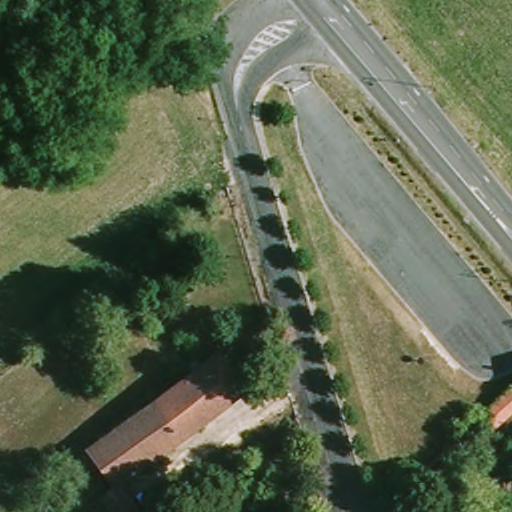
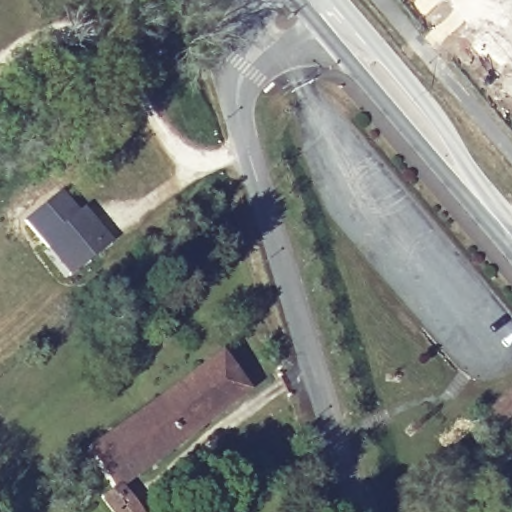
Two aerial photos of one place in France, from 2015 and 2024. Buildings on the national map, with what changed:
new [(52,249),(30,221),(64,193),(80,214),(86,209),(91,216),(113,243),(81,269),(74,275),(52,249)]
unchanged [(244,391),(119,489),(136,512),(111,512),(101,499),(113,490),(88,454),(218,356),(244,391)]
unchanged [(495,431),(484,419),(512,391),(512,415),(495,431)]

